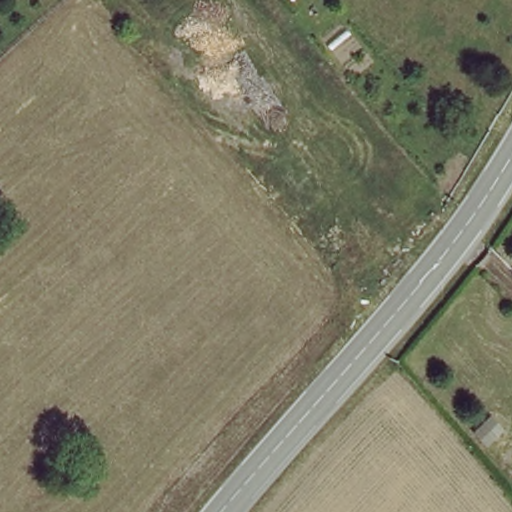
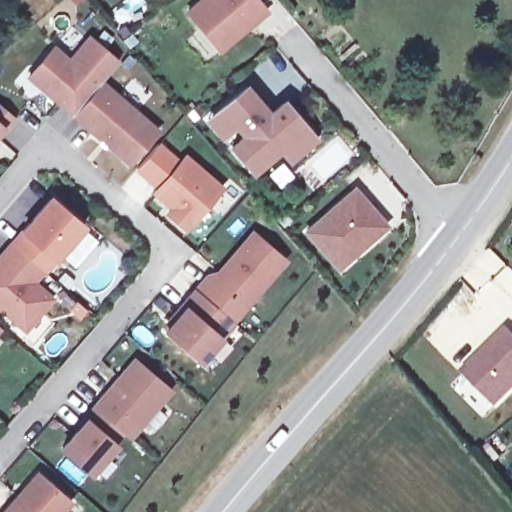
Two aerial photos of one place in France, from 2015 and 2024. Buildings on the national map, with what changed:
new [(202,0),(255,0),(266,12),(220,51),(187,13),(202,0)]
new [(50,44),(66,57),(86,34),(114,59),(97,79),(70,110),(26,72),(50,44)]
new [(97,79),(154,127),(126,159),(70,110),(97,79)]
new [(290,161),(281,150),(253,172),(232,147),(245,136),(236,125),(229,132),(223,137),(208,120),(214,115),(246,87),(270,115),(284,102),(306,127),(316,139),(290,161)]
new [(4,130),(2,128),(0,130),(0,105),(15,118),(4,130)]
new [(158,145),(171,157),(150,180),(137,169),(158,145)]
new [(186,157),(221,188),(186,229),(168,214),(173,208),(155,193),(186,157)]
new [(355,184),(389,223),(336,271),(302,232),(355,184)]
new [(51,199),(83,227),(45,272),(12,244),(51,199)]
new [(208,277),(213,281),(253,234),(285,261),(233,322),(197,290),(208,277)]
new [(37,281),(57,297),(26,332),(0,309),(0,257),(12,244),(45,272),(37,281)]
new [(185,310),(182,307),(197,290),(233,322),(234,322),(200,361),(166,332),(185,310)]
new [(506,323),(512,329),(512,389),(495,406),(461,371),(506,323)]
new [(135,361),(170,391),(129,438),(123,432),(95,408),(135,361)]
new [(86,422),(85,420),(95,408),(123,432),(114,443),(116,445),(91,473),(63,449),(86,422)]
new [(70,502),(61,512),(5,512),(38,474),(70,502)]

